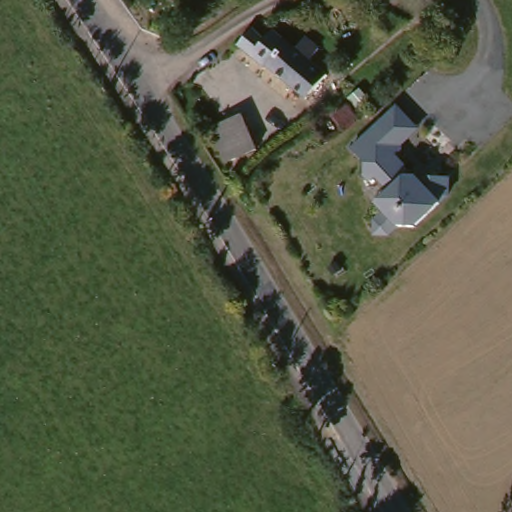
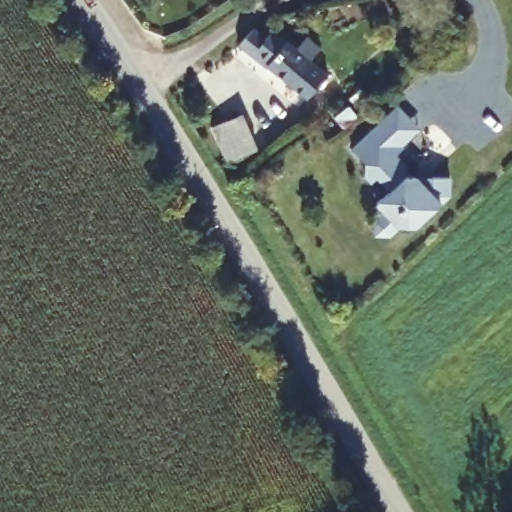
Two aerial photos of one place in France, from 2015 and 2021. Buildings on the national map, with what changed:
unchanged [(254,35),(266,44),(273,35),(326,79),(306,104),(239,51),(254,35)]
unchanged [(413,232),(396,231),(389,238),(375,238),(375,224),(383,217),(374,207),(388,195),(375,181),(362,181),(363,168),(350,154),(377,128),(389,117),(395,111),(398,114),(416,133),(398,150),(401,153),(393,160),(404,172),(404,181),(413,181),(421,190),(430,182),(447,182),(447,200),(413,232)]
unchanged [(257,151),(229,162),(216,130),(243,118),(257,151)]

